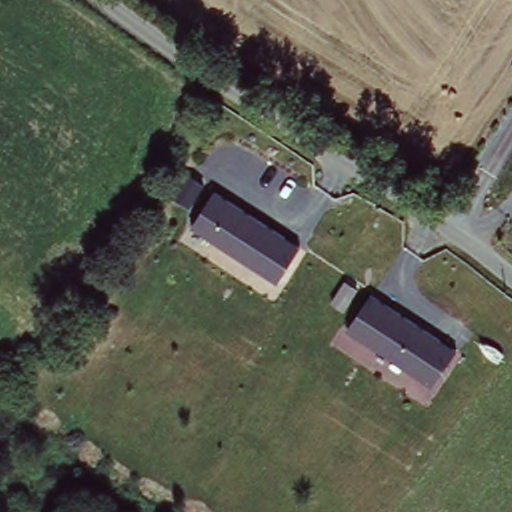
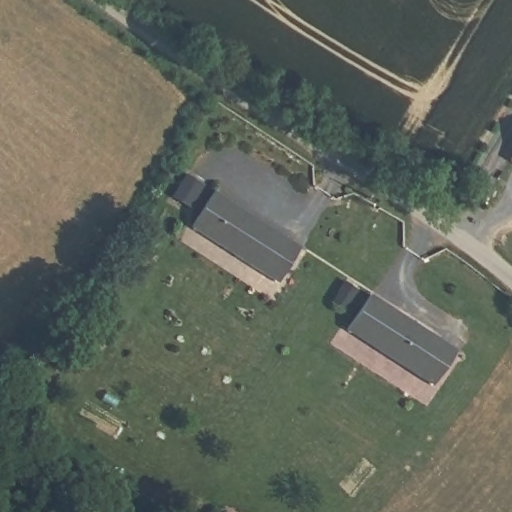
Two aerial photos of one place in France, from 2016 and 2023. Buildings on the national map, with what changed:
unchanged [(189,207),(168,193),(184,175),(202,189),(189,207)]
unchanged [(274,282),(191,226),(217,195),(297,249),(274,282)]
unchanged [(430,385),(347,330),(371,297),(453,354),(430,385)]

